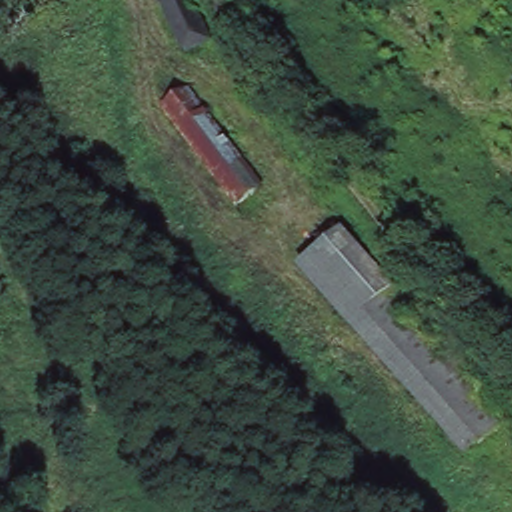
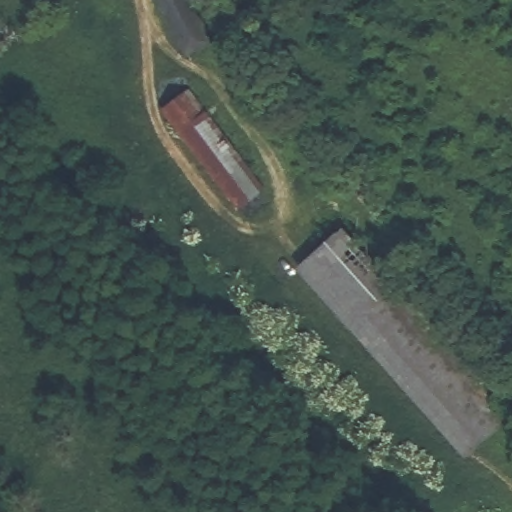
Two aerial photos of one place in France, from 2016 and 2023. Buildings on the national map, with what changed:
unchanged [(187,55),(177,38),(154,0),(190,0),(203,22),(213,39),(187,55)]
unchanged [(205,160),(195,167),(185,155),(196,146),(164,106),(186,88),(232,147),(262,183),(238,205),(211,168),(205,160)]
unchanged [(505,407),(461,448),(295,265),(339,226),(505,407)]

